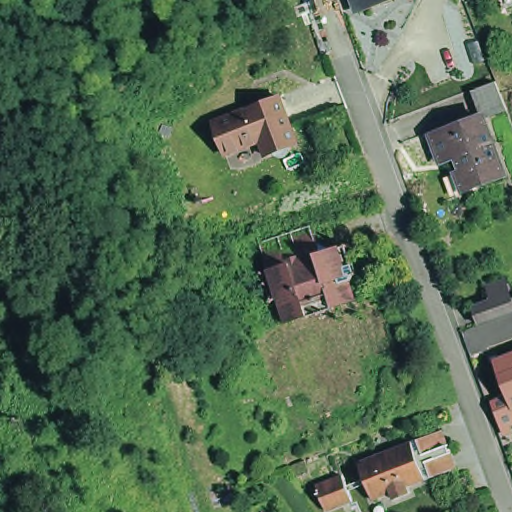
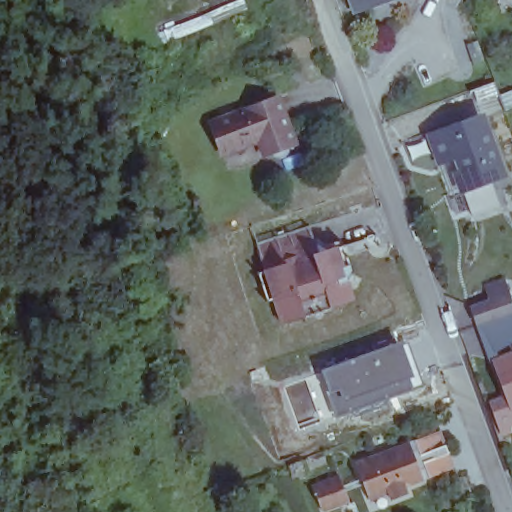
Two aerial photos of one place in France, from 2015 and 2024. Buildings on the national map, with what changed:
unchanged [(354,0),(385,0),(358,11),(354,0)]
unchanged [(480,130),(469,101),(494,91),(498,104),(505,120),(480,130)]
unchanged [(226,146),(218,125),(284,100),(292,121),(226,146)]
unchanged [(302,146),(271,157),(265,142),(230,156),(226,146),(292,121),(302,146)]
unchanged [(504,187),(474,199),(467,181),(460,184),(454,167),(447,169),(439,172),(430,148),(438,145),(480,130),(504,187)]
unchanged [(309,322),(288,329),(281,307),(273,308),(265,280),(272,277),(269,266),(265,253),(277,249),(315,237),(320,250),(324,262),(345,255),(350,263),(354,262),(360,281),(352,283),(360,306),(337,313),(338,317),(310,326),(309,322)]
unchanged [(512,302),(512,318),(480,330),(474,313),(494,306),(488,292),(500,288),(506,286),(512,302)]
new [(402,340),(422,387),(335,419),(320,370),(402,340)]
unchanged [(512,403),(507,405),(495,369),(512,363),(512,403)]
new [(305,378),(321,422),(300,430),(283,387),(305,378)]
unchanged [(450,455),(449,455),(455,470),(406,487),(408,495),(392,502),(390,494),(372,501),(360,471),(357,462),(440,432),(443,439),(450,455)]
unchanged [(349,507),(334,512),(321,512),(315,493),(313,490),(339,480),(340,483),(349,507)]

